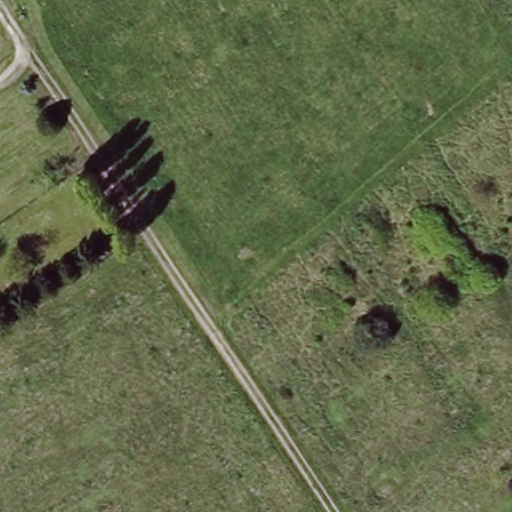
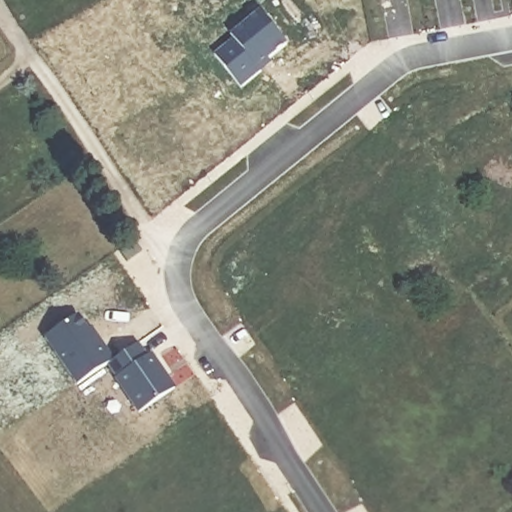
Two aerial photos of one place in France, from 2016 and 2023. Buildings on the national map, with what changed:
new [(233,39),(230,35),(260,10),(287,43),(257,67),(261,70),(240,86),(214,54),(233,39)]
new [(132,239),(140,250),(125,261),(117,250),(132,239)]
new [(76,311),(86,326),(89,324),(112,357),(106,361),(75,381),(42,335),(76,311)]
new [(112,357),(136,341),(145,354),(149,351),(173,385),(137,409),(114,375),(116,374),(106,361),(112,357)]

